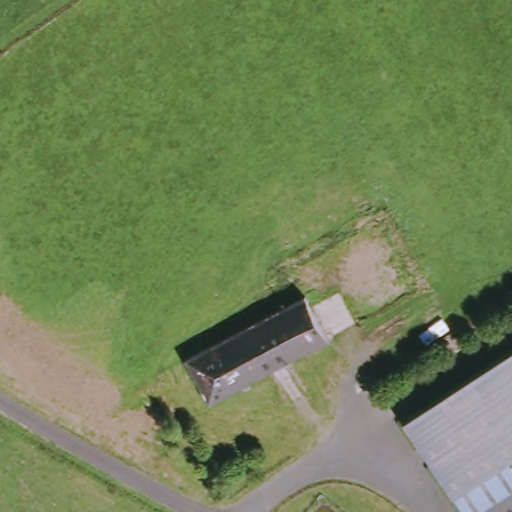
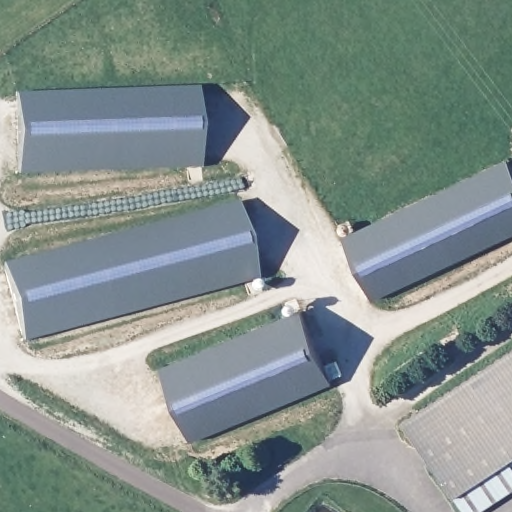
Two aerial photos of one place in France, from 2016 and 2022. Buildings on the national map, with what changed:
new [(18,175),(16,94),(196,88),(201,166),(18,175)]
new [(512,169),(512,236),(371,301),(344,236),(509,161),(512,169)]
new [(27,254),(236,203),(259,280),(24,343),(4,264),(27,254)]
demolished [(329,340),(211,404),(188,359),(306,295),(329,340)]
new [(190,442),(160,368),(291,315),(288,307),(288,304),(289,303),(291,301),(294,302),(296,303),(298,305),(331,384),(190,442)]
unchanged [(412,419),(512,356),(512,499),(489,512),(474,512),(412,419)]

